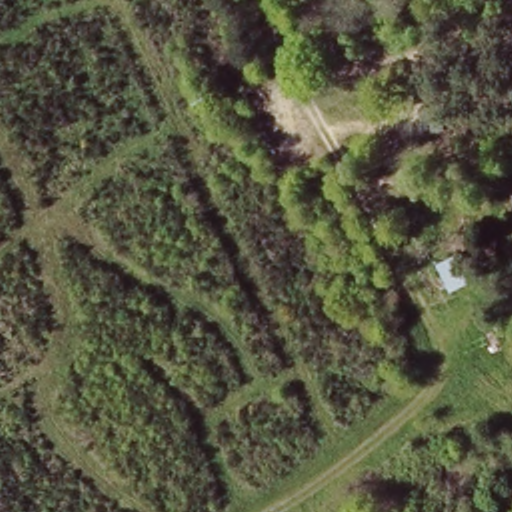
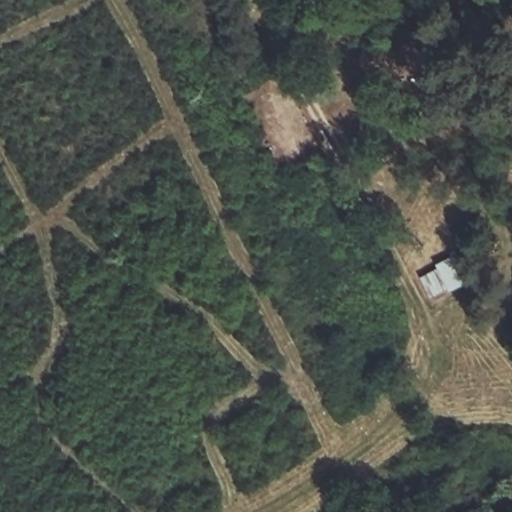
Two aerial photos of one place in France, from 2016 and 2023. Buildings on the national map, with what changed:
unchanged [(461,74),(486,140),(470,147),(445,81),(461,74)]
unchanged [(452,252),(468,278),(432,299),(417,269),(452,252)]

